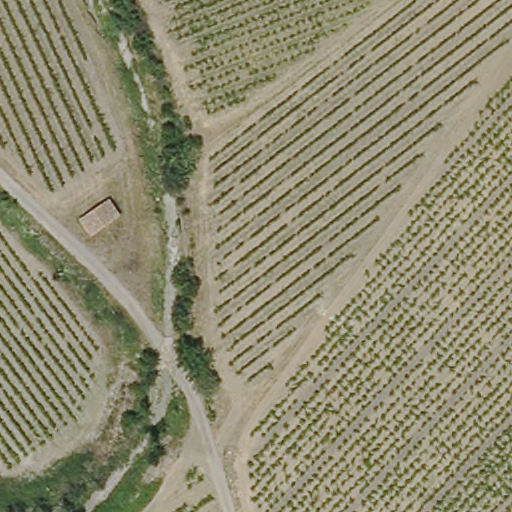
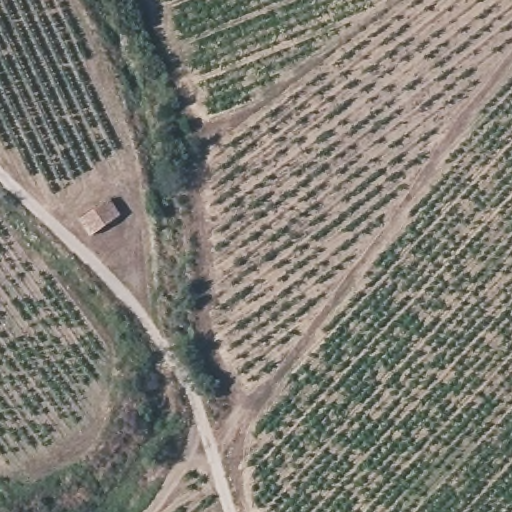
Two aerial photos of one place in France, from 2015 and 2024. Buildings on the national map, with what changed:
unchanged [(114,196),(127,218),(93,235),(82,217),(114,196)]

